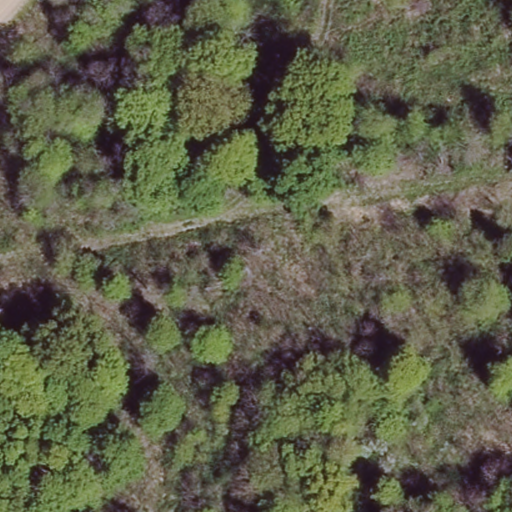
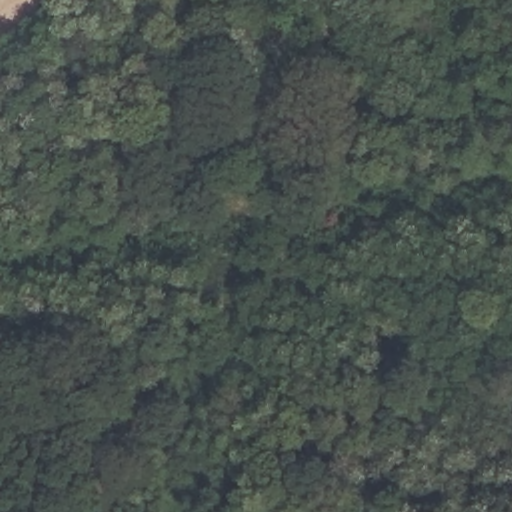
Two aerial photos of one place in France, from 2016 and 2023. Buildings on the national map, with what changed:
[]

